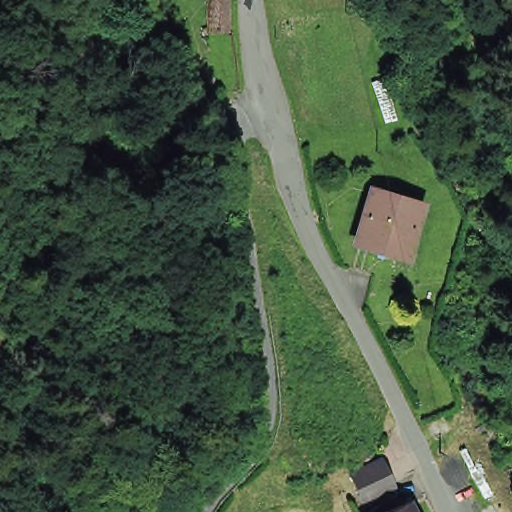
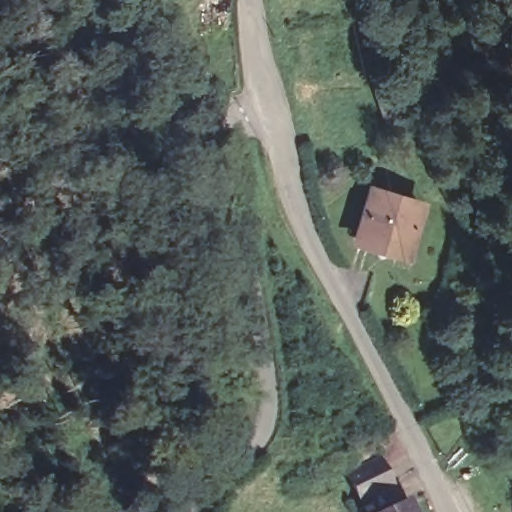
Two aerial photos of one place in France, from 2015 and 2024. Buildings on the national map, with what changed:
unchanged [(220,22),(201,21),(201,0),(220,0),(220,22)]
unchanged [(367,184),(414,199),(399,249),(353,236),(367,184)]
unchanged [(402,460),(369,474),(357,452),(390,438),(402,460)]
unchanged [(365,512),(404,490),(415,512),(414,512),(365,512)]

